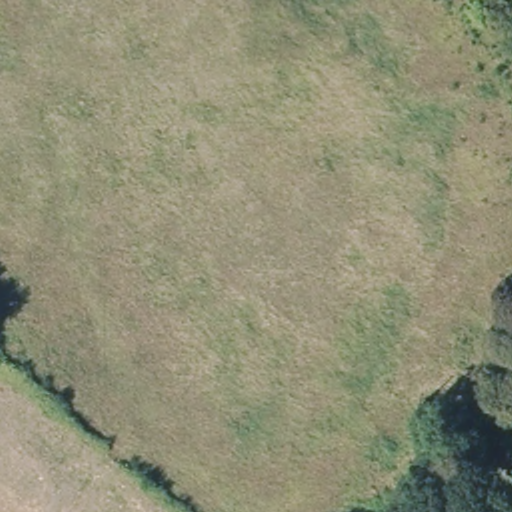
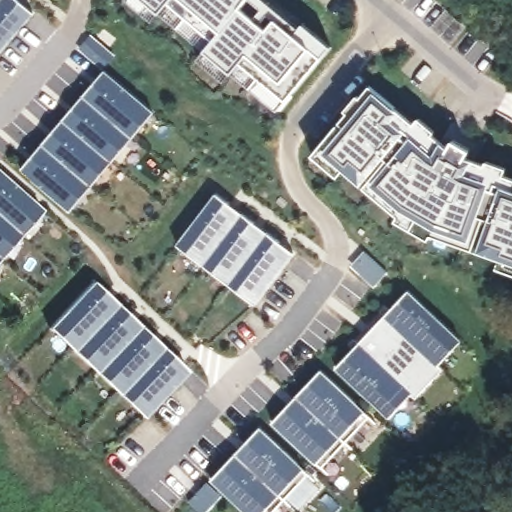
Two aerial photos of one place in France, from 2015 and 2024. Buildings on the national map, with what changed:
new [(36,15),(30,22),(1,56),(0,58),(0,0),(19,0),(23,3),(36,15)]
new [(229,82),(202,60),(209,52),(182,29),(164,14),(158,23),(130,0),(268,0),(303,29),(307,24),(334,48),(290,101),(281,112),(254,89),(237,74),(229,82)]
new [(32,177),(24,172),(36,158),(46,146),(56,134),(66,122),(76,110),(86,98),(96,86),(107,73),(114,79),(151,110),(156,114),(136,140),(116,164),(95,188),(74,213),(69,208),(32,177)]
new [(500,268),(503,260),(468,247),(436,235),(433,240),(399,221),(402,217),(376,195),(347,171),(342,178),(317,156),(327,144),(374,87),(419,124),(422,120),(436,131),(432,135),(443,144),(455,123),(488,142),(478,160),(489,164),(491,161),(510,168),(508,176),(512,178),(512,272),(500,268)]
new [(40,205),(47,211),(25,235),(4,259),(0,264),(0,169),(5,174),(40,205)]
new [(207,267),(181,247),(185,241),(219,196),(233,206),(246,215),(259,225),(271,234),(283,243),(297,254),(291,262),(263,299),(258,305),(232,286),(207,267)]
new [(78,353),(54,330),(59,324),(98,283),(110,294),(121,306),(133,316),(144,327),(156,338),(168,348),(179,359),(192,371),(185,378),(153,412),(148,418),(124,396),(101,374),(78,353)]
new [(421,398),(416,394),(394,418),(386,411),(341,369),(364,345),(389,317),(412,293),(457,334),(465,342),(443,366),(447,371),(421,398)]
new [(358,451),(334,476),(327,470),(283,429),(277,423),(324,372),(330,377),(374,419),(382,425),(358,451)]
new [(296,507),(291,512),(250,512),(222,486),(217,481),(240,455),(264,429),(269,435),(313,475),(319,481),(296,507)]

